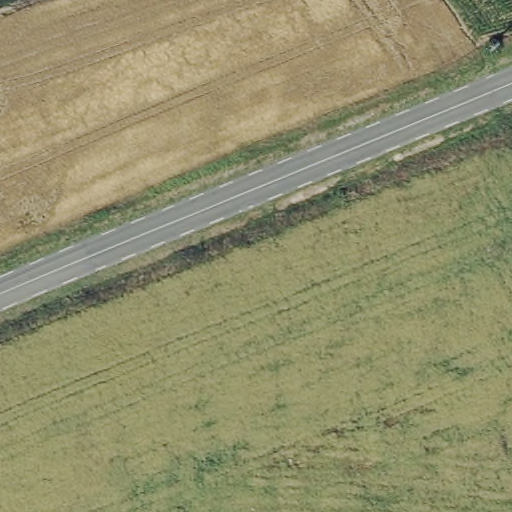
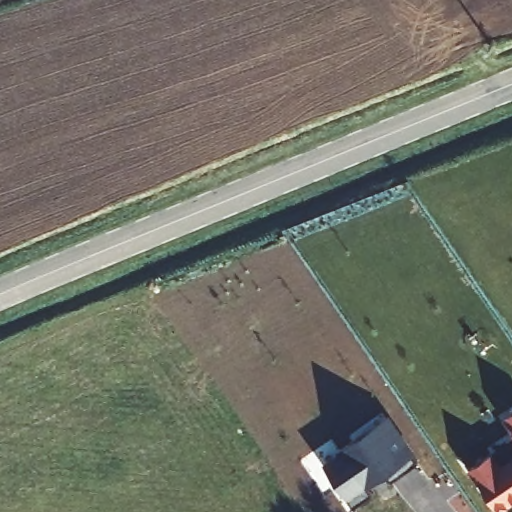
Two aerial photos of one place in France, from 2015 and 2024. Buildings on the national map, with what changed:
new [(420,457),(392,480),(387,473),(367,487),(371,494),(353,507),(321,463),(390,412),(420,457)]
new [(512,412),(512,433),(502,419),(512,412)]
new [(467,469),(493,451),(501,464),(512,456),(512,504),(501,512),(499,512),(467,469)]

